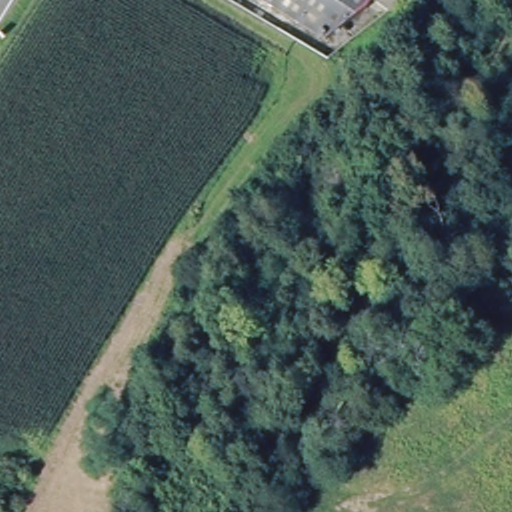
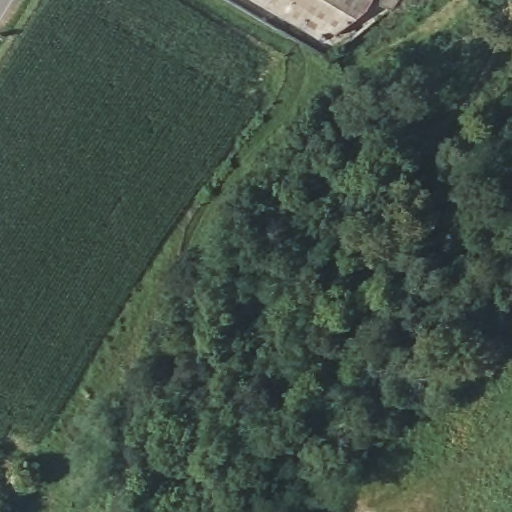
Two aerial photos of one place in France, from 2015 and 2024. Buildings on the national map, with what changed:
unchanged [(368,41),(357,52),(265,0),(398,0),(398,1),(368,41)]

